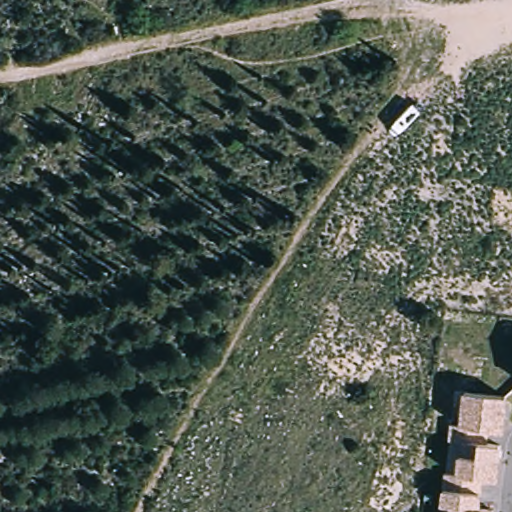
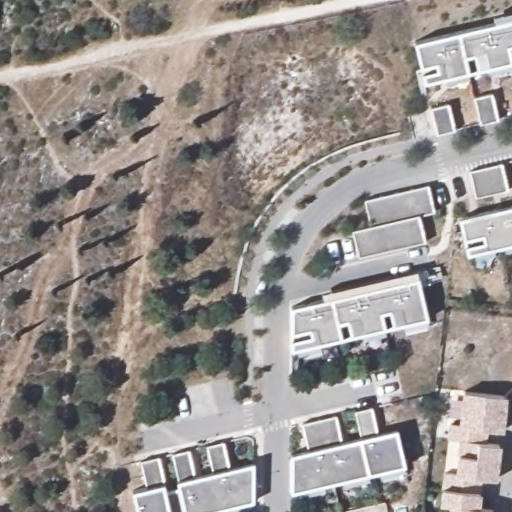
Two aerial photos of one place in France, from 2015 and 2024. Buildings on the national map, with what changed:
new [(491,16),(512,11),(512,60),(423,79),(413,42),(493,23),(491,16)]
new [(493,94),(500,121),(482,124),(475,98),(493,94)]
new [(449,104),(456,130),(439,134),(431,108),(449,104)]
new [(471,171),(487,168),(503,163),(509,189),(493,192),(476,196),(471,171)]
new [(350,232),(369,227),(362,201),(426,186),(432,212),(417,215),(423,242),(357,256),(350,232)]
new [(458,218),(512,206),(512,243),(466,254),(458,218)]
new [(290,348),(290,307),(322,301),(321,293),(414,271),(426,317),(290,348)]
unchanged [(450,439),(452,423),(463,425),(467,392),(507,396),(502,431),(488,429),(486,444),(461,441),(450,439)]
new [(289,455),(307,450),(301,424),(335,416),(341,442),(359,437),(353,412),(370,408),(377,434),(396,430),(404,466),(290,492),(289,455)]
unchanged [(496,480),(482,478),(480,493),(443,488),(445,473),(457,474),(461,441),(486,444),(501,446),(496,480)]
new [(227,469),(251,463),(251,501),(207,512),(136,512),(130,492),(146,489),(139,462),(156,458),(162,485),(163,492),(176,488),(175,481),(177,479),(171,456),(187,452),(193,477),(212,473),(206,446),(221,443),(227,469)]
unchanged [(478,508),(493,510),(493,512),(452,512),(453,506),(442,504),(443,488),(480,493),(478,508)]

